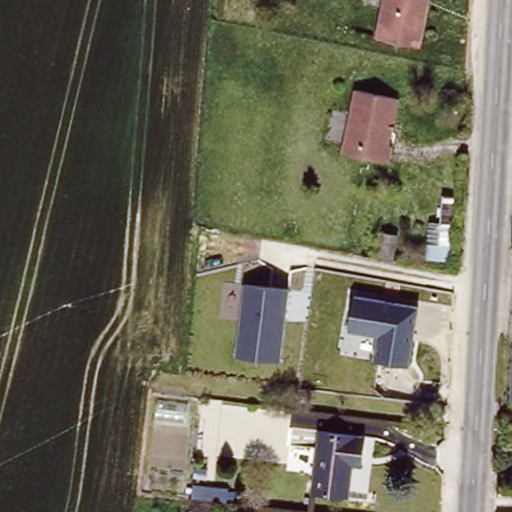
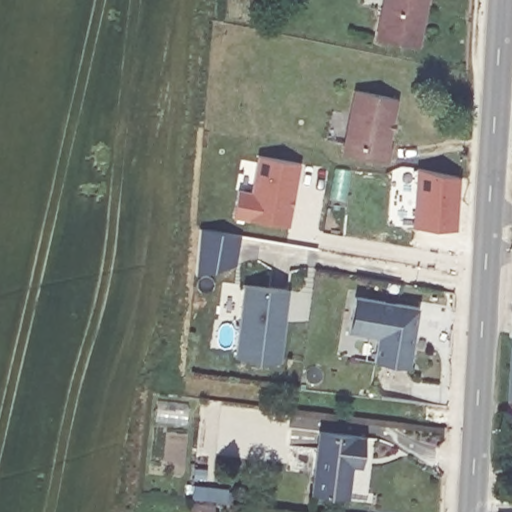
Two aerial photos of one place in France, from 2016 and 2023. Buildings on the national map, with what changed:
unchanged [(433,1),(424,40),(380,31),(388,0),(429,0),(433,1)]
unchanged [(345,146),(359,81),(392,88),(402,90),(393,129),(395,130),(389,156),(383,154),(345,146)]
new [(237,187),(251,190),(257,155),(303,162),(291,227),(232,217),(237,187)]
new [(419,168),(461,176),(459,226),(437,224),(437,227),(416,225),(419,168)]
demolished [(452,257),(429,255),(431,231),(440,231),(443,193),(457,194),(452,257)]
demolished [(382,262),(385,236),(401,238),(397,265),(382,262)]
unchanged [(289,287),(281,360),(234,356),(244,283),(289,287)]
unchanged [(419,303),(409,366),(373,358),(377,334),(347,329),(354,291),(419,303)]
unchanged [(320,424),(366,430),(365,453),(353,452),(353,459),(350,490),(312,485),(320,424)]

